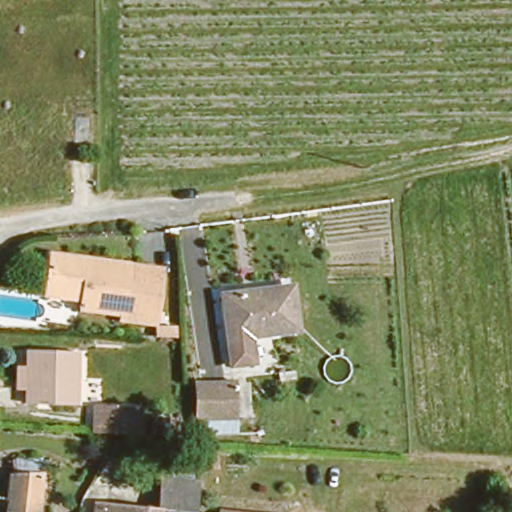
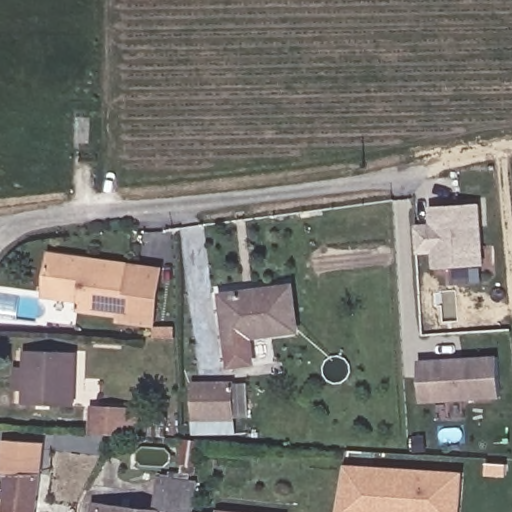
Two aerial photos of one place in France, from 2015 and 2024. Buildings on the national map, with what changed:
new [(485,263),(437,267),(436,252),(418,252),(417,226),(434,225),(434,207),(481,204),(485,263)]
unchanged [(120,312),(121,306),(81,302),(82,294),(44,290),(48,250),(87,254),(126,258),(157,261),(156,270),(151,316),(120,312)]
unchanged [(294,322),(248,325),(250,355),(229,356),(222,286),(290,279),(294,322)]
unchanged [(71,403),(20,400),(23,341),(73,345),(71,403)]
new [(502,398),(423,402),(421,361),(501,355),(502,398)]
unchanged [(239,414),(203,415),(202,381),(238,380),(239,414)]
unchanged [(125,427),(105,426),(103,426),(90,425),(91,403),(125,403),(134,403),(133,427),(125,427)]
unchanged [(170,428),(156,427),(157,418),(170,420),(170,428)]
unchanged [(4,465),(34,467),(29,512),(0,512),(0,493),(0,490),(4,465)]
new [(344,465),(464,472),(461,512),(336,512),(344,465)]
unchanged [(166,506),(165,508),(165,512),(92,512),(94,497),(155,504),(159,482),(159,472),(199,477),(198,484),(198,487),(194,508),(166,506)]
unchanged [(227,512),(165,512),(165,508),(166,506),(194,508),(227,512)]

